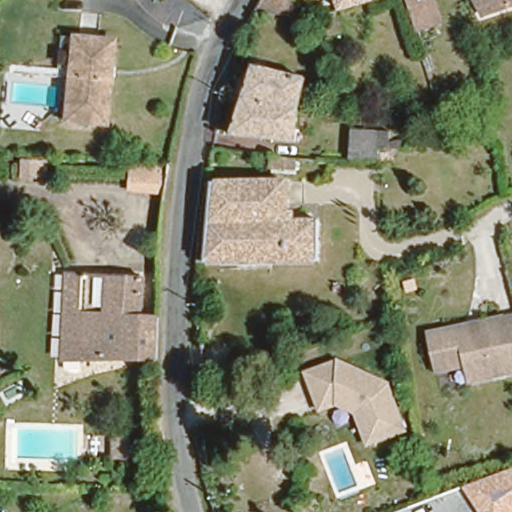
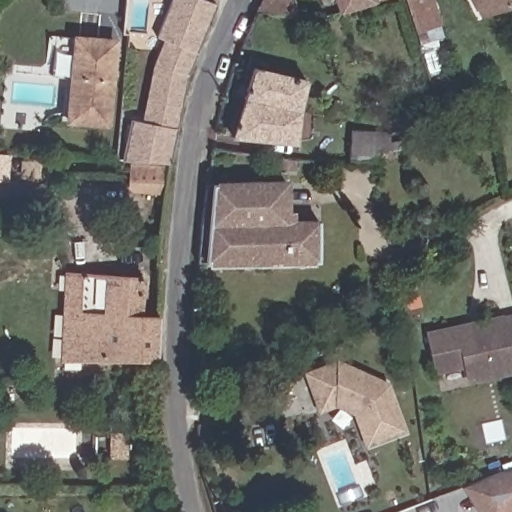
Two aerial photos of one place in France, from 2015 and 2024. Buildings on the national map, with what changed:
new [(142,121),(153,63),(162,38),(156,36),(170,0),(207,0),(214,3),(195,53),(185,76),(175,129),(169,164),(122,161),(130,119),(142,121)]
unchanged [(277,17),(254,17),(259,7),(264,0),(295,0),(289,18),(277,17)]
unchanged [(321,9),(319,0),(351,0),(344,2),(330,6),(321,9)]
unchanged [(413,25),(406,0),(432,0),(437,16),(413,25)]
unchanged [(512,0),(512,5),(482,15),(475,0),(512,0)]
unchanged [(330,6),(344,2),(360,56),(363,80),(338,76),(338,62),(321,9),(330,6)]
unchanged [(78,37),(113,40),(108,119),(72,116),(78,37)]
unchanged [(265,96),(264,96),(243,90),(253,61),(305,73),(298,104),(265,96)]
unchanged [(264,96),(265,96),(298,104),(295,134),(230,129),(243,90),(264,96)]
unchanged [(347,164),(316,162),(318,131),(376,132),(379,154),(379,165),(361,164),(347,164)]
unchanged [(285,173),(269,171),(270,160),(286,162),(285,173)]
unchanged [(166,167),(163,201),(134,200),(137,166),(166,167)]
unchanged [(296,177),(296,214),(328,214),(328,255),(207,256),(209,228),(214,178),(296,177)]
unchanged [(161,359),(141,357),(66,358),(69,272),(126,275),(127,261),(142,261),(147,262),(143,315),(162,315),(161,359)]
unchanged [(506,372),(461,382),(457,366),(436,371),(427,372),(419,333),(429,332),(453,327),(454,332),(474,327),(473,323),(495,318),(495,319),(512,316),(512,370),(506,372)]
unchanged [(368,448),(356,417),(339,410),(320,415),(305,371),(340,358),(392,382),(409,432),(368,448)]
new [(512,467),(512,512),(478,512),(461,487),(512,467)]

